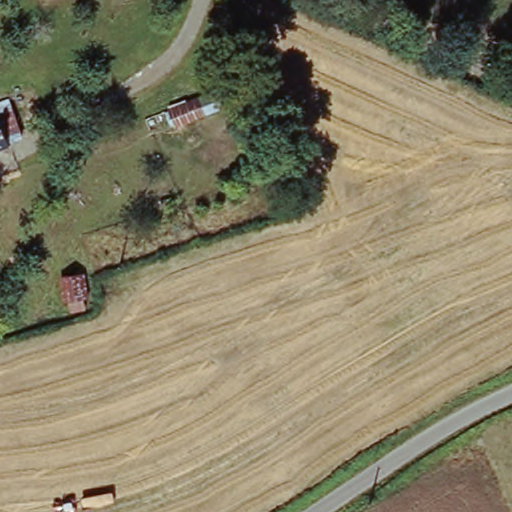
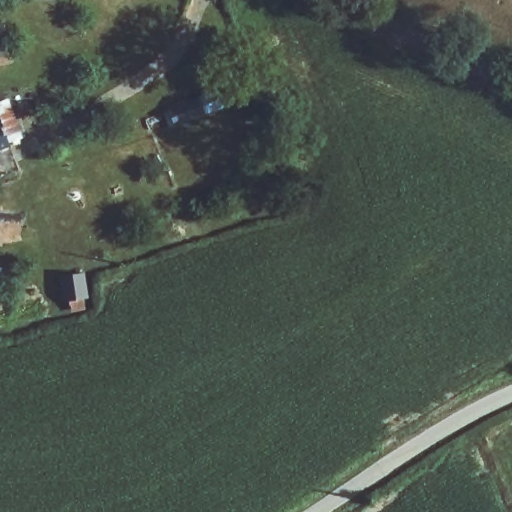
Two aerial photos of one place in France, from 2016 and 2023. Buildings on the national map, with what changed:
unchanged [(206,102),(213,119),(183,131),(177,115),(206,102)]
unchanged [(0,119),(7,116),(20,112),(28,135),(15,140),(18,150),(0,156),(0,119)]
unchanged [(77,315),(75,303),(71,303),(68,281),(92,276),(95,299),(90,300),(91,313),(77,315)]

